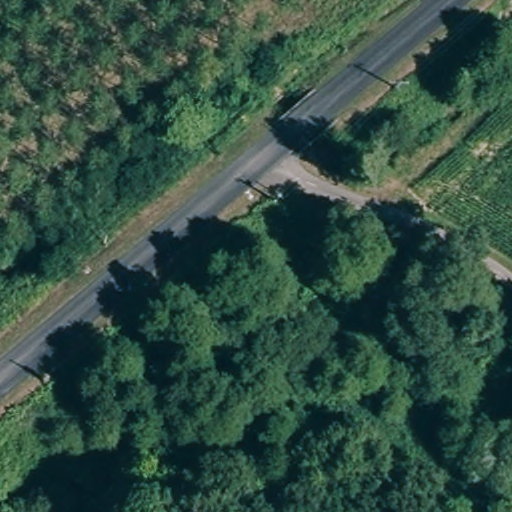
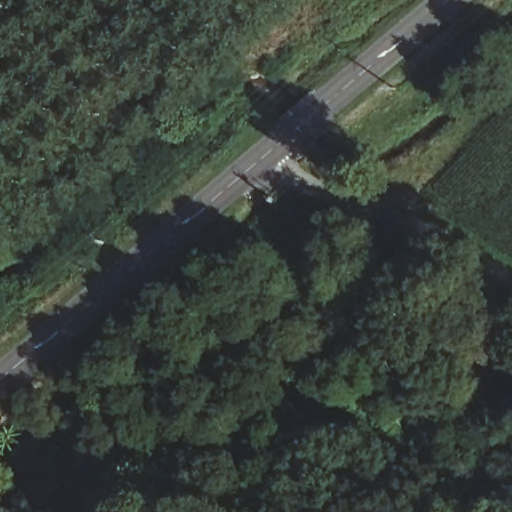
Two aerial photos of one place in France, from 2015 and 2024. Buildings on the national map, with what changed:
[]

